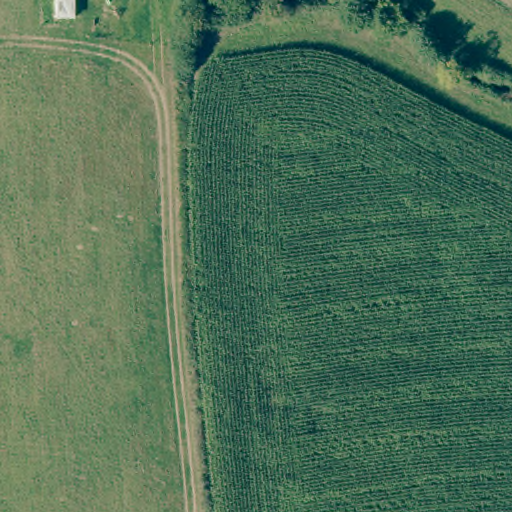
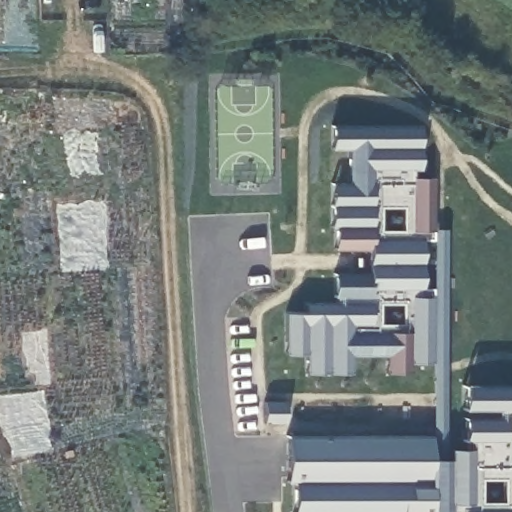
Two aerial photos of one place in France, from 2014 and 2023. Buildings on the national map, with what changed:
new [(418,177),(432,176),(432,228),(447,231),(449,409),(463,410),(462,386),(512,385),(512,512),(291,512),(291,483),(286,484),(285,435),(432,435),(432,364),(412,363),(412,374),(389,374),(388,356),(353,355),(353,374),(307,374),(308,355),(287,355),(287,310),(302,310),(302,303),(333,303),(332,273),(367,274),(367,249),(333,249),(333,226),(329,225),(329,182),(348,182),(347,150),(330,149),(328,125),(418,125),(418,177)]

